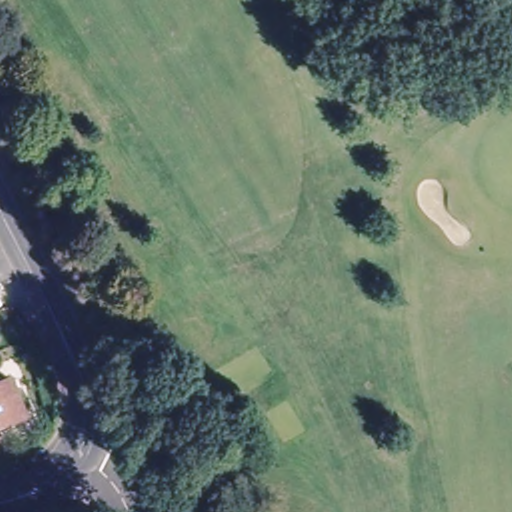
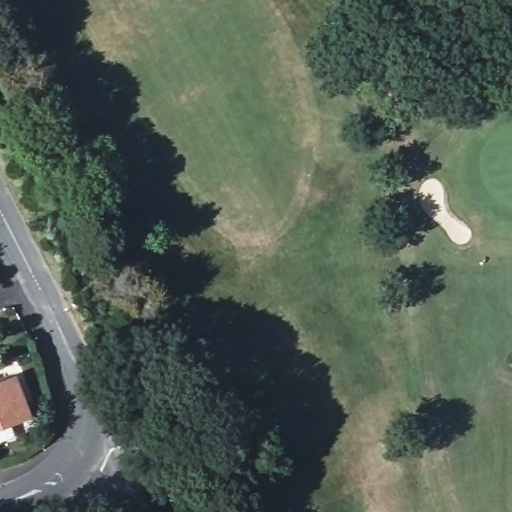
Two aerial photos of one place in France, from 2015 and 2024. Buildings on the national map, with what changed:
unchanged [(22,415),(0,424),(0,380),(6,377),(22,415)]

